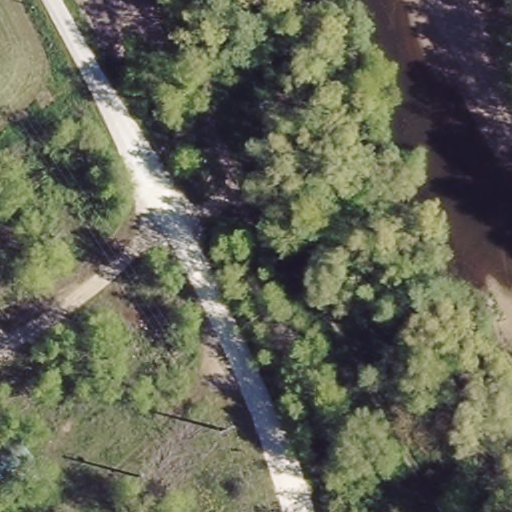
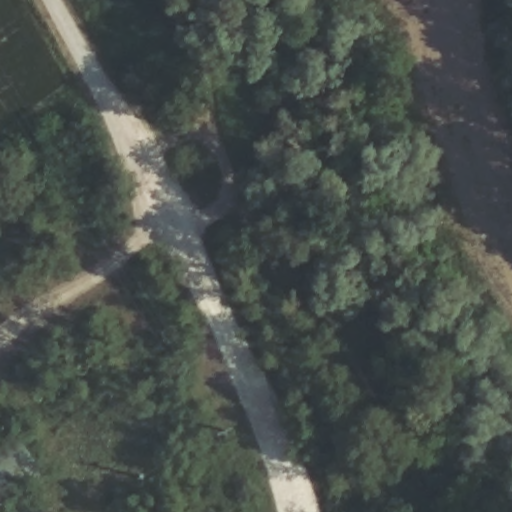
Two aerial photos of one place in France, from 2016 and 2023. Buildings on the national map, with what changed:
unchanged [(0,499),(0,440),(11,433),(38,473),(0,499)]
unchanged [(263,512),(247,512),(242,497),(257,493),(263,512)]

